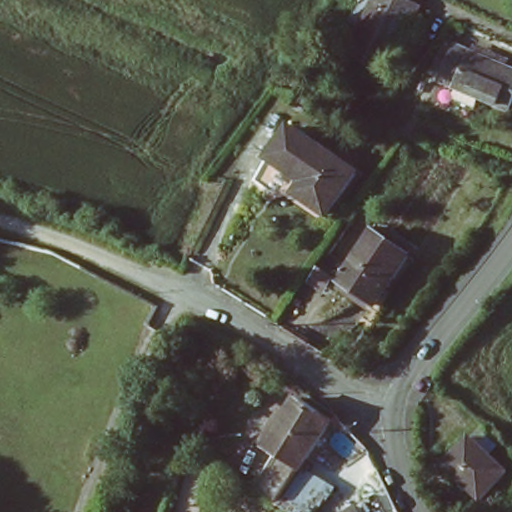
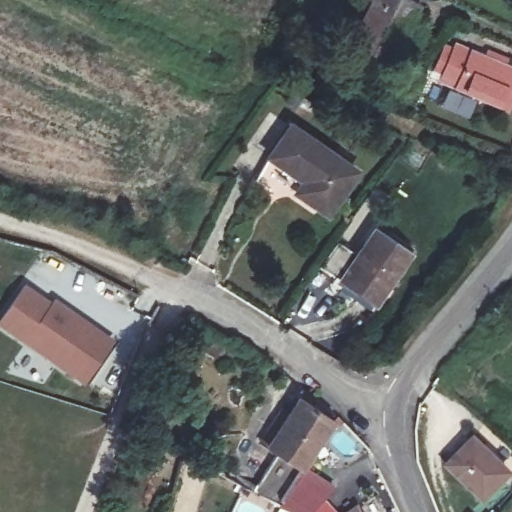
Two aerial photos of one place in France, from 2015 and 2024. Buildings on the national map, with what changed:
unchanged [(417,3),(385,69),(345,50),(370,0),(409,0),(417,3)]
unchanged [(452,43),(512,70),(512,99),(507,109),(438,78),(452,43)]
unchanged [(292,123),(355,171),(324,213),(296,192),(305,179),(269,152),(292,123)]
unchanged [(410,250),(373,307),(337,284),(374,227),(410,250)]
new [(50,303),(52,299),(114,342),(83,386),(0,328),(0,317),(22,284),(50,303)]
unchanged [(335,416),(307,467),(287,504),(248,484),(254,472),(260,476),(276,449),(267,444),(299,393),(335,416)]
unchanged [(471,438),(507,473),(482,499),(445,464),(471,438)]
unchanged [(319,512),(302,512),(294,507),(287,504),(307,467),(336,487),(319,512)]

